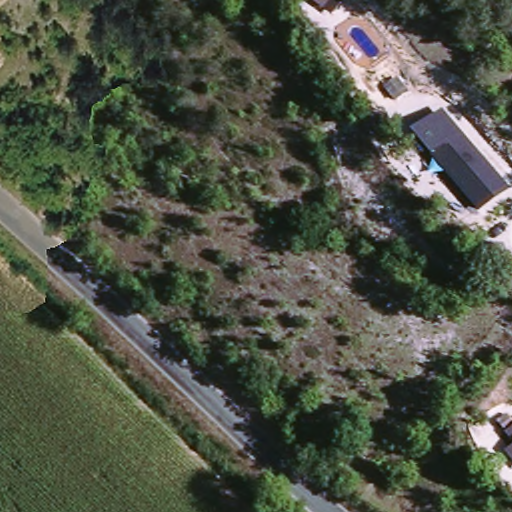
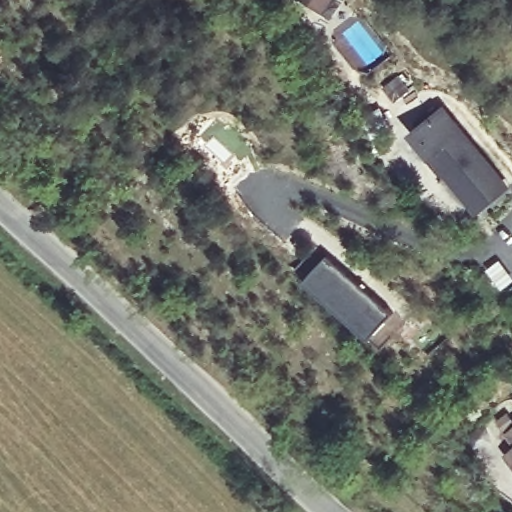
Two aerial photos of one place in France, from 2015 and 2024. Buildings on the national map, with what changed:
unchanged [(303,0),(334,0),(324,14),(303,0)]
unchanged [(432,160),(411,135),(442,105),(511,188),(480,215),(432,160)]
new [(392,314),(372,338),(307,282),(327,258),(392,314)]
unchanged [(512,427),(512,474),(499,456),(512,447),(502,434),(512,427)]

